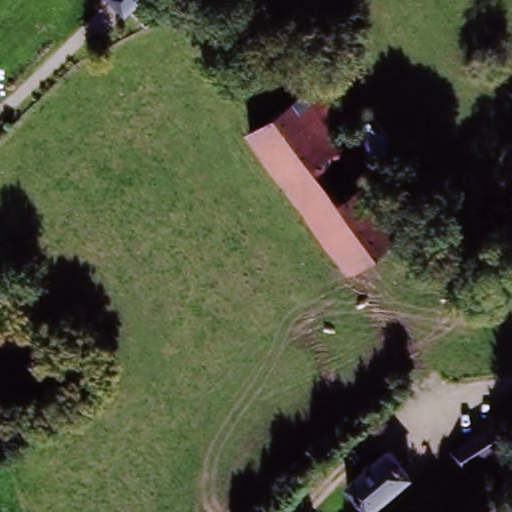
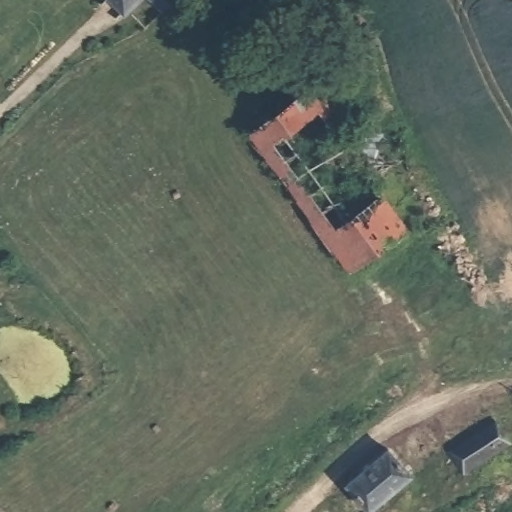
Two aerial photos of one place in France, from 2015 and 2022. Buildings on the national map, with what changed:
unchanged [(118,37),(80,0),(156,0),(118,37)]
unchanged [(319,80),(354,126),(370,114),(402,158),(371,181),(409,230),(350,273),(246,133),(319,80)]
unchanged [(512,439),(512,442),(465,475),(450,453),(499,419),(512,439)]
unchanged [(367,512),(345,487),(390,449),(415,477),(373,512),(367,512)]

